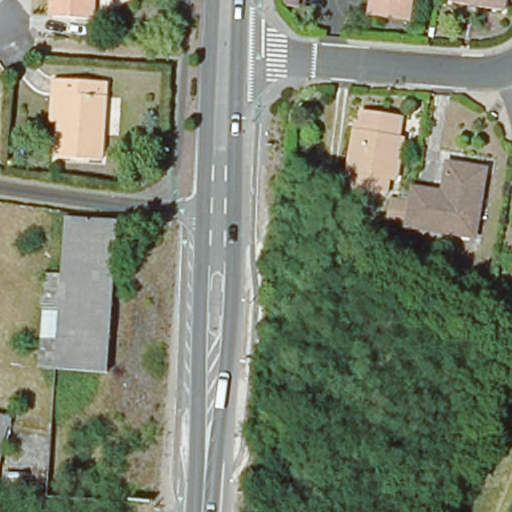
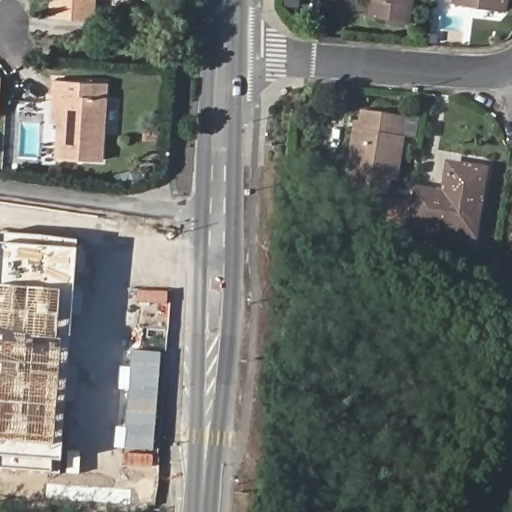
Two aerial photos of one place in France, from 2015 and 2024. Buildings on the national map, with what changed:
unchanged [(50,17),(51,0),(93,0),(92,20),(50,17)]
unchanged [(371,17),(372,0),(410,0),(407,22),(371,17)]
unchanged [(448,4),(449,0),(497,0),(496,10),(448,4)]
unchanged [(104,82),(101,161),(56,159),(57,123),(50,122),(52,94),(52,80),(104,82)]
unchanged [(395,122),(392,141),(397,143),(390,186),(380,185),(378,198),(348,193),(351,180),(342,178),(349,134),(350,126),(357,127),(358,116),(395,122)]
unchanged [(415,190),(445,194),(449,164),(483,170),(473,235),(408,225),(415,190)]
demolished [(108,371),(59,368),(71,214),(119,220),(108,371)]
new [(76,250),(61,463),(59,475),(50,475),(0,470),(0,235),(77,241),(76,250)]
new [(152,447),(127,445),(135,355),(159,357),(152,447)]
demolished [(0,459),(0,416),(10,418),(0,459)]

